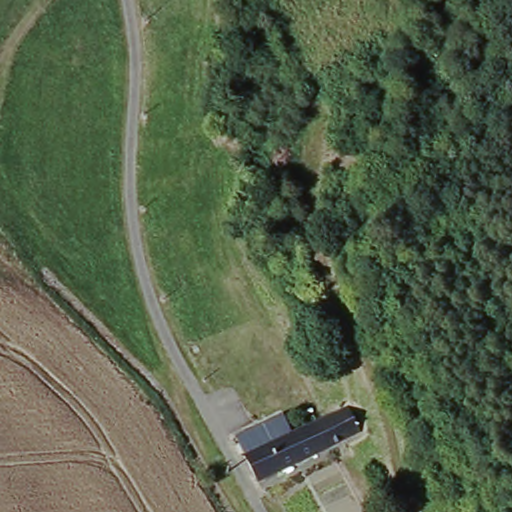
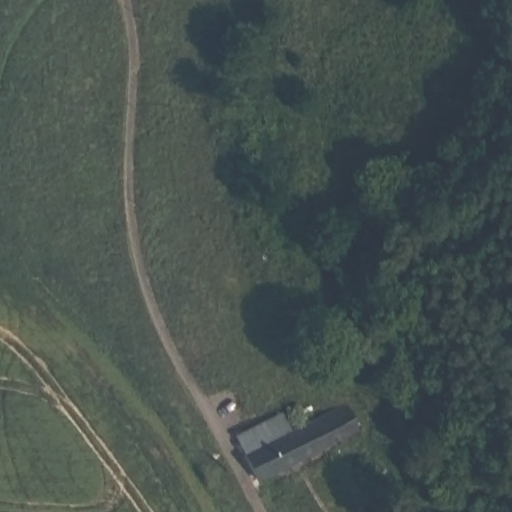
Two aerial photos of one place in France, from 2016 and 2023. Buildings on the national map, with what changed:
unchanged [(372,290),(386,320),(369,329),(356,301),(372,290)]
unchanged [(282,411),(292,430),(344,405),(358,437),(257,485),(232,435),(282,411)]

